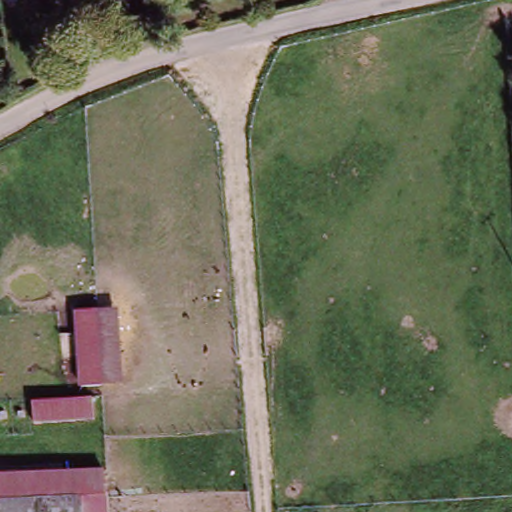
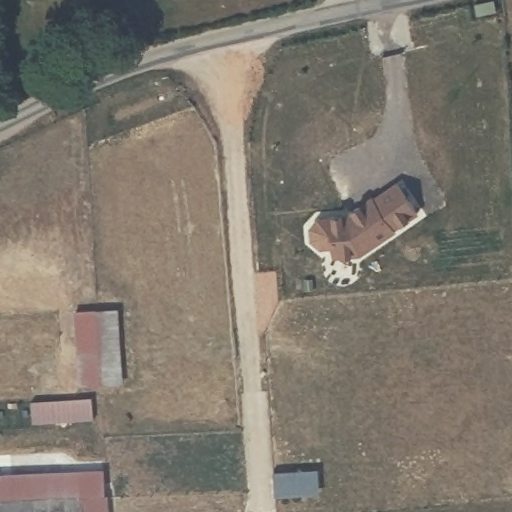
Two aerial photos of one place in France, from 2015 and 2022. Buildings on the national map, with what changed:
new [(310,226),(317,218),(330,217),(330,216),(346,216),(372,198),(373,200),(397,184),(417,214),(392,230),(394,232),(358,255),(332,255),(331,246),(318,246),(310,238),(310,226)]
unchanged [(119,309),(125,382),(80,385),(73,312),(119,309)]
unchanged [(92,397),(93,421),(33,425),(32,402),(92,397)]
unchanged [(107,512),(82,512),(81,495),(0,502),(0,477),(104,468),(107,512)]
unchanged [(82,512),(0,512),(0,502),(81,495),(82,512)]

